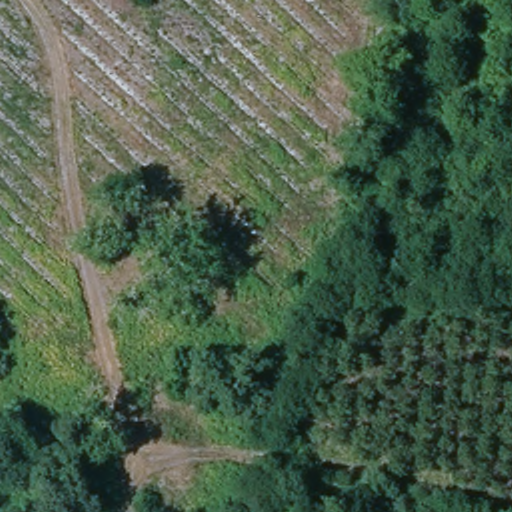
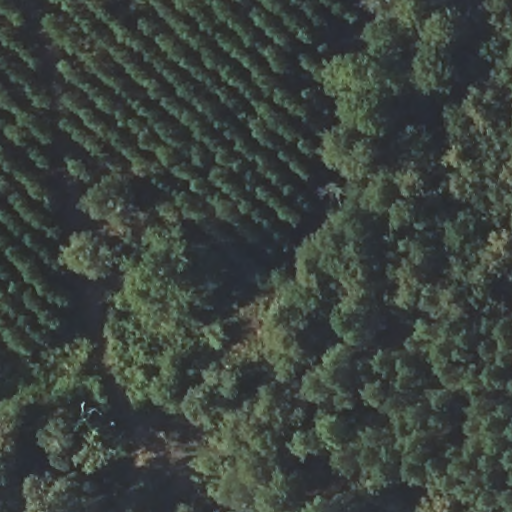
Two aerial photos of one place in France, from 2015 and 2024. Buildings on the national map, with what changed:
[]

